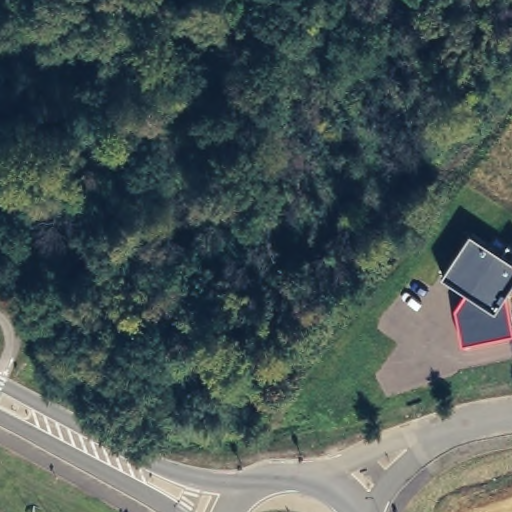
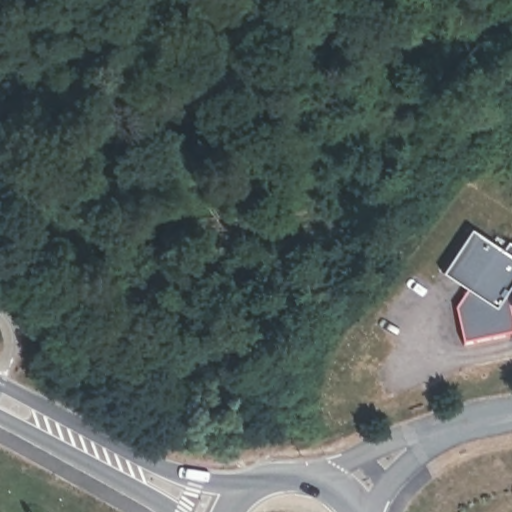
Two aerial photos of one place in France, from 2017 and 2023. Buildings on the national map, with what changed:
unchanged [(512,322),(512,332),(462,341),(455,304),(467,287),(443,272),(472,229),(512,256),(512,285),(507,292),(512,322)]

